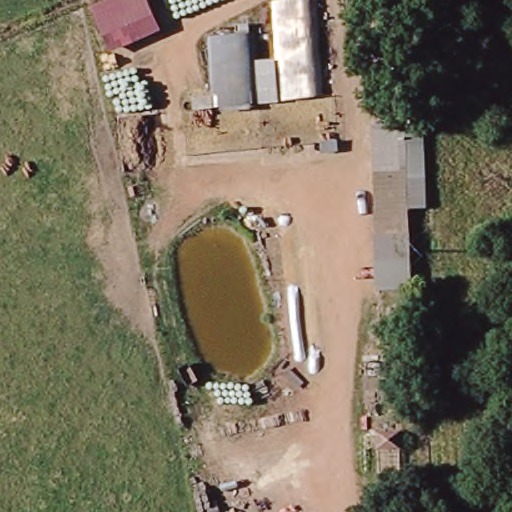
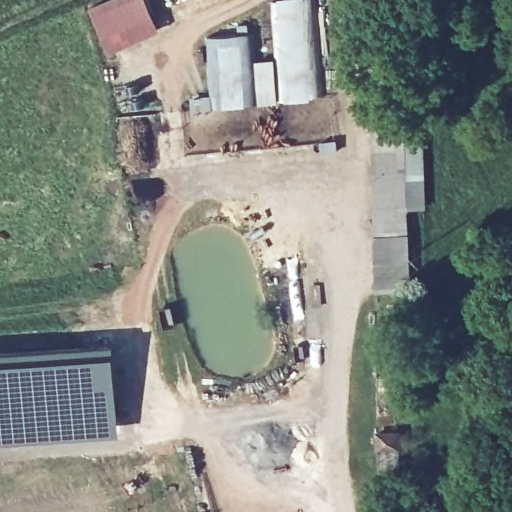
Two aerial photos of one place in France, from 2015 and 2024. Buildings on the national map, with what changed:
unchanged [(160,30),(109,51),(91,6),(105,0),(147,0),(160,30)]
unchanged [(243,32),(243,20),(255,21),(257,60),(285,59),(283,0),(329,0),(331,101),(197,110),(196,99),(217,96),(212,36),(243,32)]
unchanged [(412,131),(411,260),(377,259),(373,132),(412,131)]
new [(114,350),(119,438),(57,440),(0,444),(0,353),(25,351),(114,350)]

